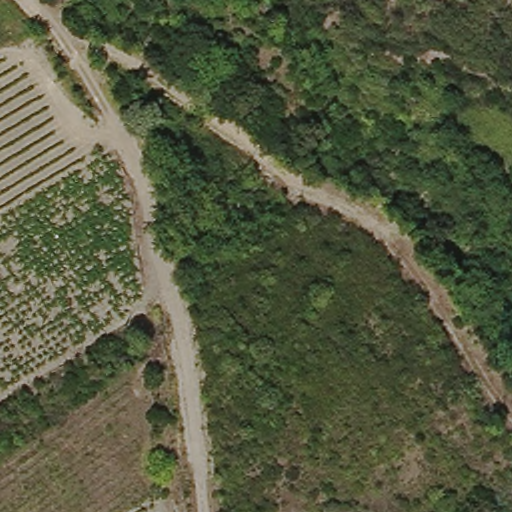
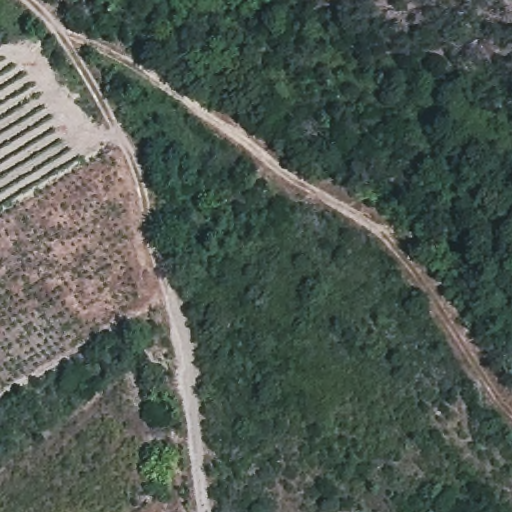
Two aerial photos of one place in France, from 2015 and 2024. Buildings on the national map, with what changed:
[]

